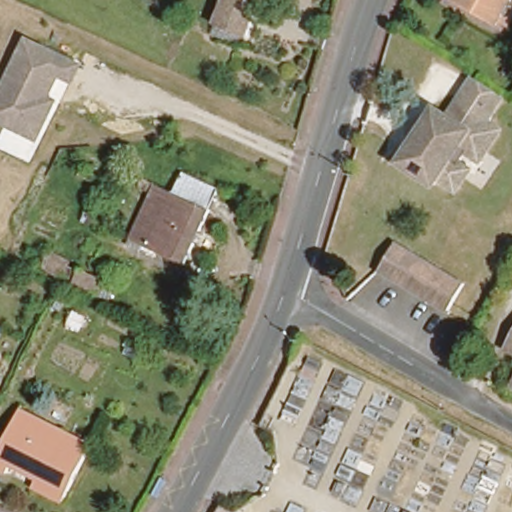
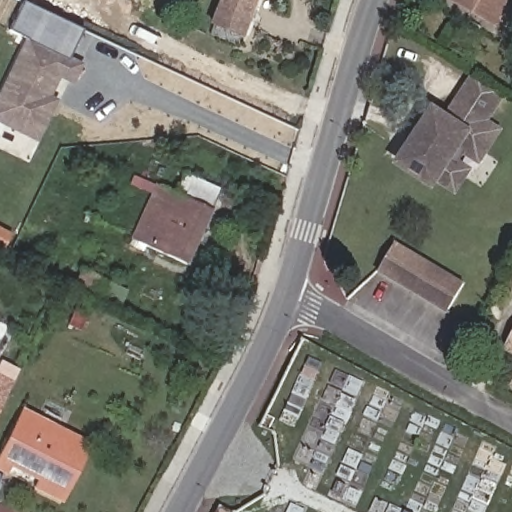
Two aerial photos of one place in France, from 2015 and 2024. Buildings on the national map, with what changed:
unchanged [(214,32),(218,23),(226,0),(262,0),(247,35),(243,34),(238,49),(212,37),(214,32)]
unchanged [(449,6),(452,0),(506,0),(491,29),(449,6)]
new [(83,31),(69,61),(25,38),(10,31),(24,3),(83,31)]
unchanged [(58,81),(49,98),(56,101),(35,145),(0,128),(0,89),(25,38),(81,66),(72,87),(58,81)]
unchanged [(492,92),(501,98),(484,125),(495,132),(478,160),(463,151),(454,166),(469,175),(458,193),(442,183),(437,190),(402,169),(437,114),(451,123),(476,82),(492,92)]
unchanged [(216,196),(182,271),(126,243),(150,191),(171,200),(180,180),(216,196)]
new [(4,247),(0,245),(0,229),(10,234),(4,247)]
unchanged [(380,279),(395,248),(467,287),(451,316),(430,306),(425,303),(380,279)]
unchanged [(59,258),(71,264),(65,279),(51,272),(45,269),(53,255),(59,258)]
unchanged [(69,285),(77,270),(106,284),(99,300),(69,285)]
unchanged [(511,354),(512,351),(512,355),(511,354)]
unchanged [(10,479),(0,474),(0,458),(23,412),(96,449),(67,508),(38,493),(41,486),(14,472),(13,474),(10,479)]

